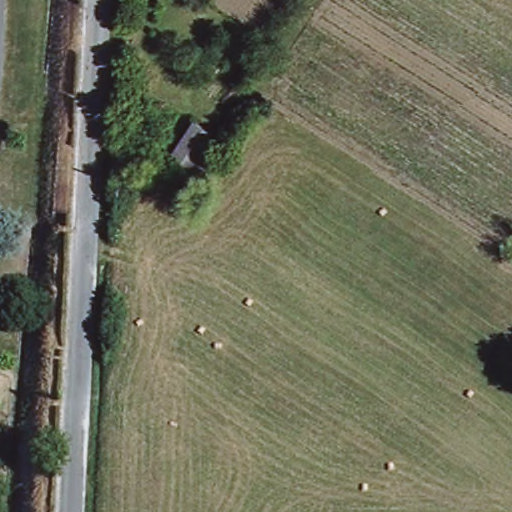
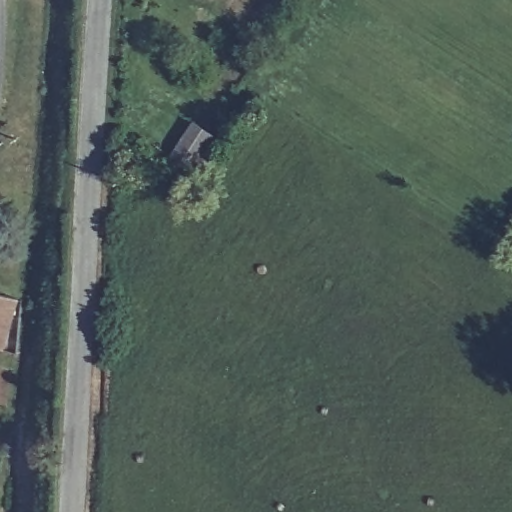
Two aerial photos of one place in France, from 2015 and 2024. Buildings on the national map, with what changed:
unchanged [(194,172),(198,165),(172,150),(195,116),(225,136),(204,168),(200,176),(194,172)]
new [(4,352),(0,351),(0,295),(19,300),(4,352)]

